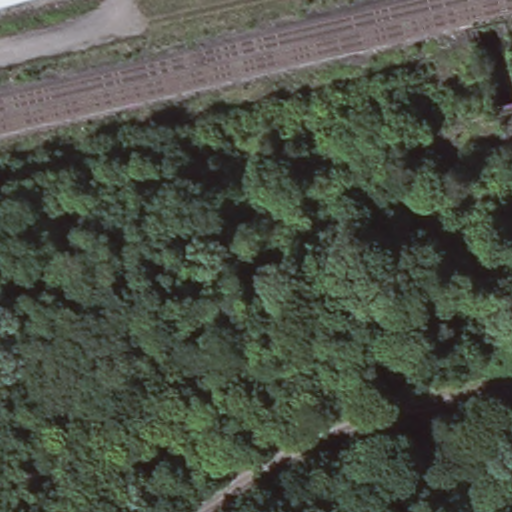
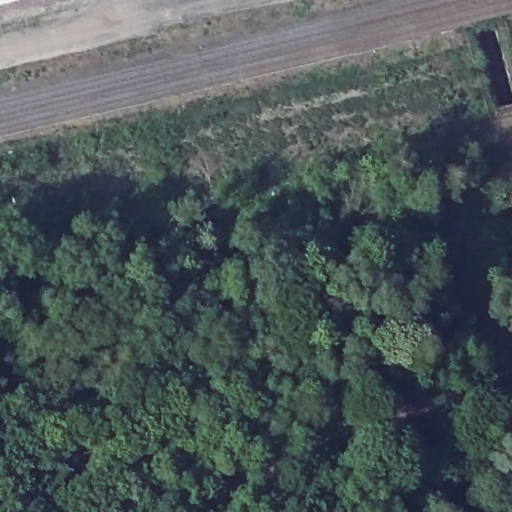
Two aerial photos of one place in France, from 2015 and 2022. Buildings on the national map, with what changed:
unchanged [(0,0),(27,0),(0,7),(0,0)]
unchanged [(107,211),(110,230),(83,232),(75,233),(75,213),(83,213),(107,211)]

